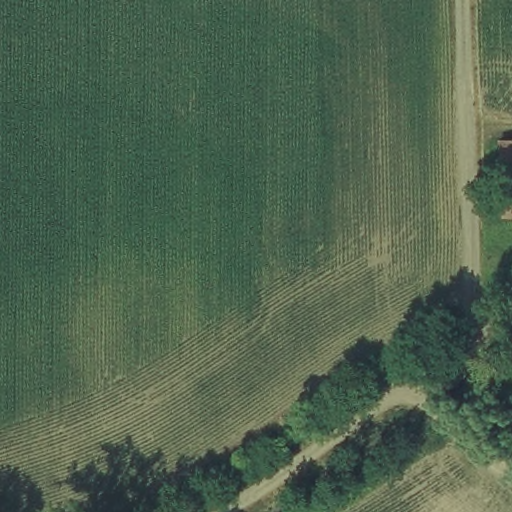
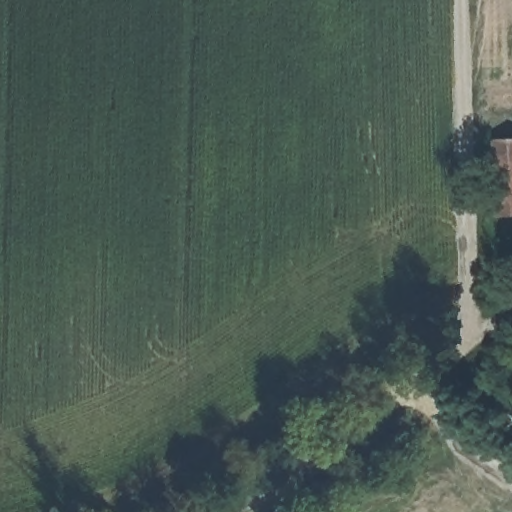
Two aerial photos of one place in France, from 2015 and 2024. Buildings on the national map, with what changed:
unchanged [(512,136),(512,211),(502,212),(496,138),(512,136)]

